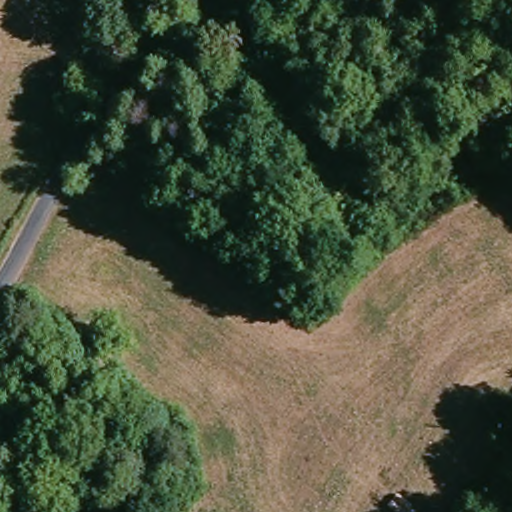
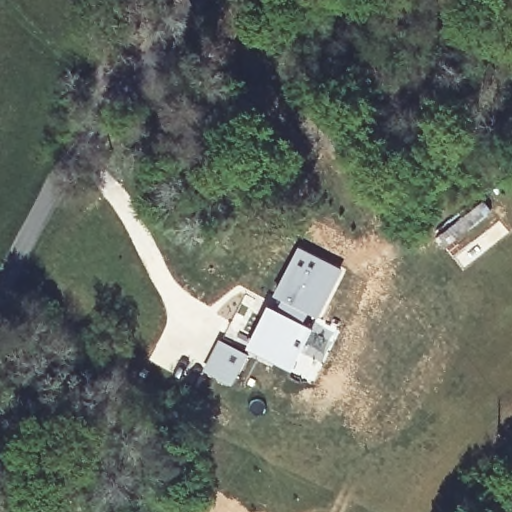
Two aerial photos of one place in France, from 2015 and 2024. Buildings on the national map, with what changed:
new [(270,307),(280,311),(283,301),(275,297),(300,248),(343,271),(320,319),(308,314),(303,325),(313,329),(292,373),(249,349),(270,307)]

